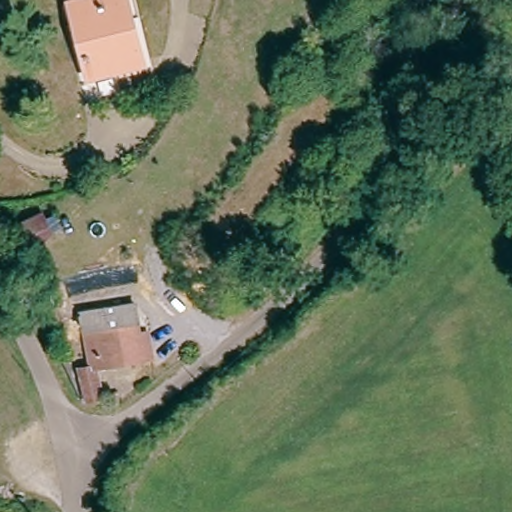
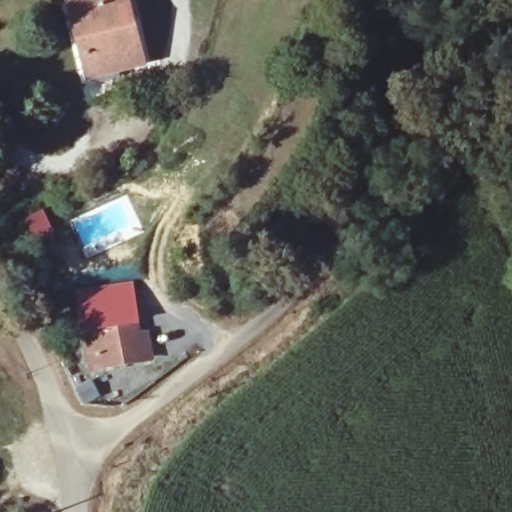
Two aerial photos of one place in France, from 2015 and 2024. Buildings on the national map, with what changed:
unchanged [(91,77),(83,51),(89,49),(72,0),(126,0),(146,57),(91,77)]
unchanged [(19,257),(6,233),(29,222),(41,246),(19,257)]
unchanged [(167,311),(174,345),(155,348),(149,313),(167,311)]
unchanged [(105,313),(134,315),(137,337),(144,336),(146,360),(91,365),(94,395),(77,397),(74,367),(85,366),(81,312),(105,313)]

